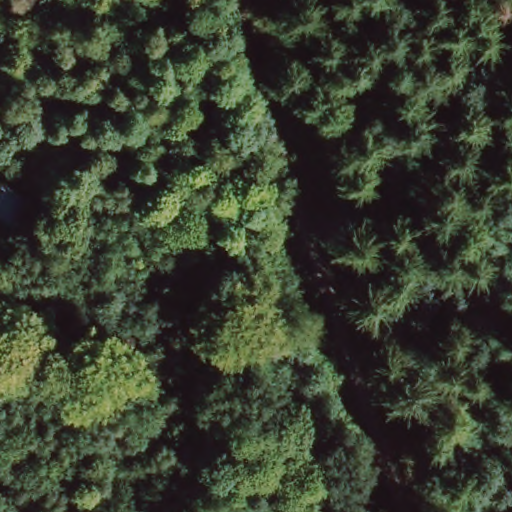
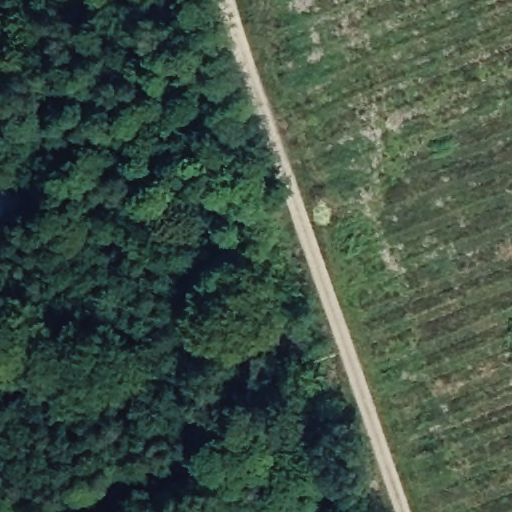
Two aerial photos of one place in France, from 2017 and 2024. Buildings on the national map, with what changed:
unchanged [(28,200),(12,228),(0,220),(0,184),(28,200)]

